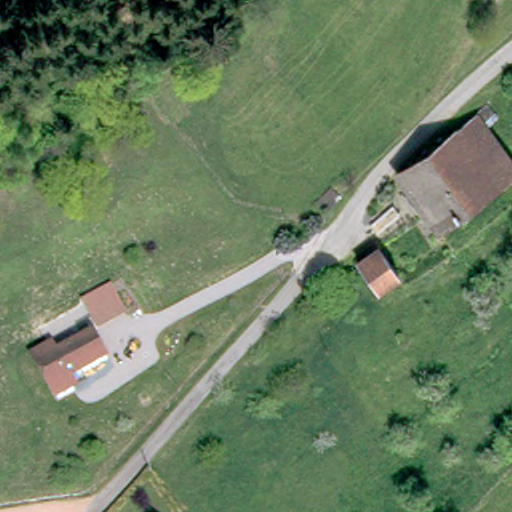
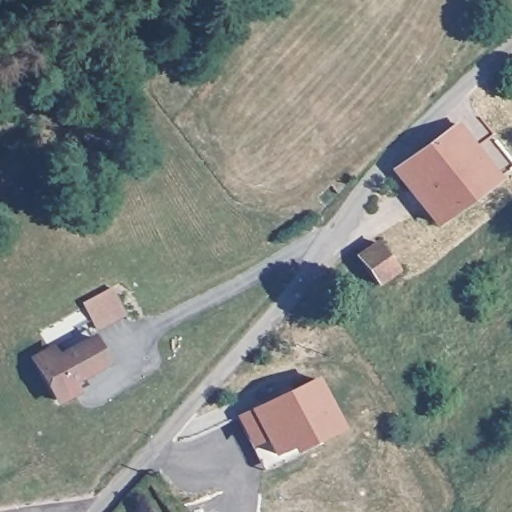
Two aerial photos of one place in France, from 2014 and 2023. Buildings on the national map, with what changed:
unchanged [(512,169),(434,225),(395,172),(475,113),(512,164),(512,169)]
unchanged [(369,283),(349,257),(373,239),(392,266),(369,283)]
unchanged [(107,287),(122,315),(93,330),(80,302),(107,287)]
unchanged [(104,363),(78,377),(81,385),(73,389),(74,393),(54,404),(33,359),(86,331),(104,363)]
new [(340,431),(291,456),(288,451),(274,459),(266,442),(251,449),(238,418),(318,382),(340,431)]

